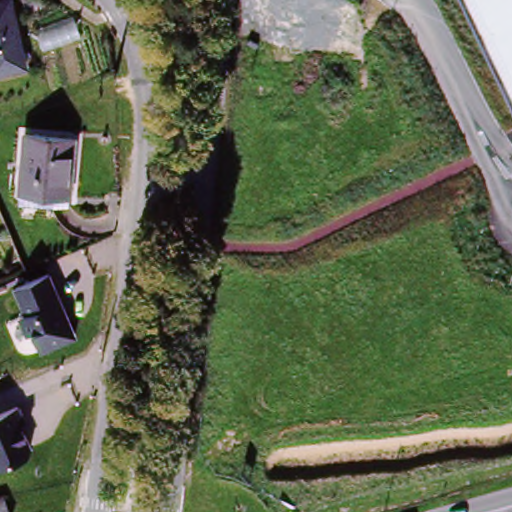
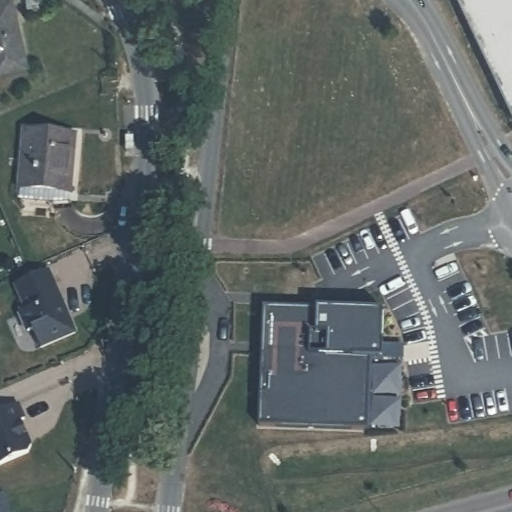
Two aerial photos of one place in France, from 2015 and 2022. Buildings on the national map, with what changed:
unchanged [(0,64),(0,0),(9,0),(23,57),(0,64)]
unchanged [(512,0),(512,103),(462,0),(512,0)]
unchanged [(77,131),(74,194),(22,192),(25,131),(77,131)]
unchanged [(77,332),(42,347),(35,328),(25,333),(20,312),(27,310),(17,283),(50,268),(77,332)]
new [(382,358),(368,357),(368,428),(261,426),(265,307),(319,309),(384,312),(382,358)]
unchanged [(17,403),(31,435),(27,437),(35,455),(1,473),(0,471),(0,412),(17,403)]
unchanged [(5,500),(9,512),(0,512),(0,501),(5,500)]

